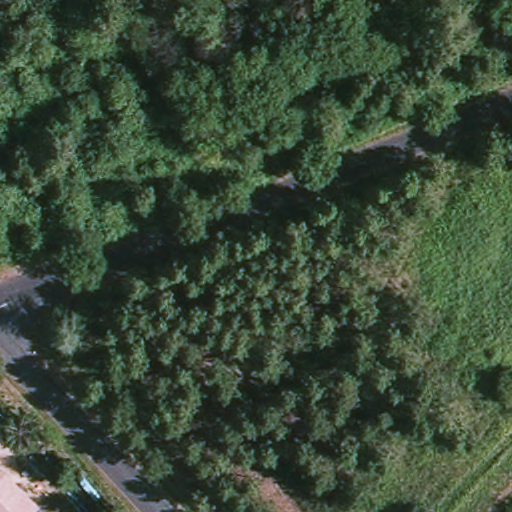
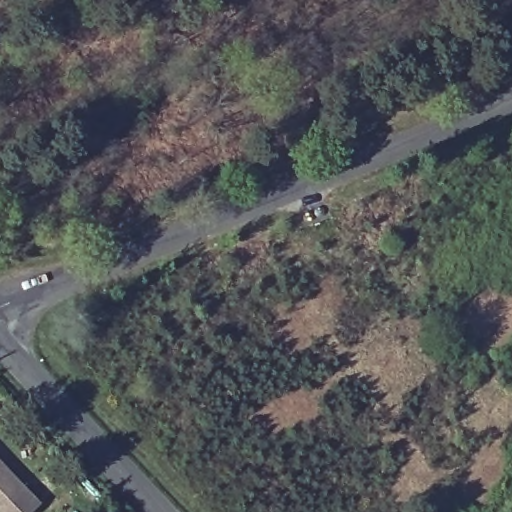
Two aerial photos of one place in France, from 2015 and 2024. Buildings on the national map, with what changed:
unchanged [(5,468),(0,475),(0,463),(5,468)]
new [(38,503),(30,512),(0,512),(0,475),(5,468),(38,503)]

